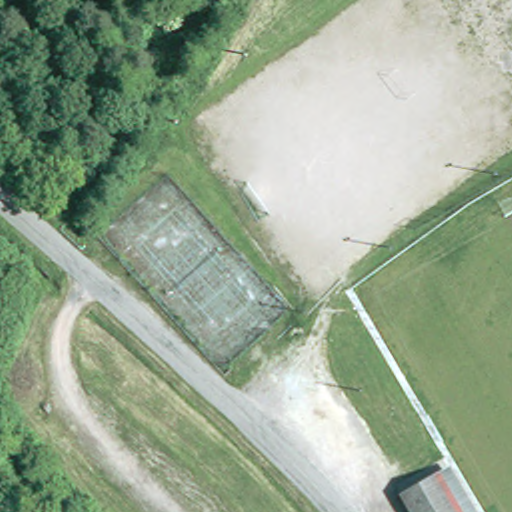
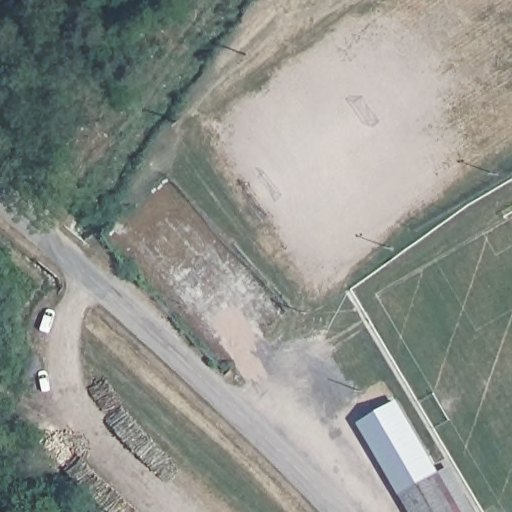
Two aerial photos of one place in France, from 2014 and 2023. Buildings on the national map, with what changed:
new [(437,467),(404,484),(408,492),(401,496),(359,423),(399,400),(437,467)]
unchanged [(445,464),(472,512),(419,512),(404,484),(445,464)]

